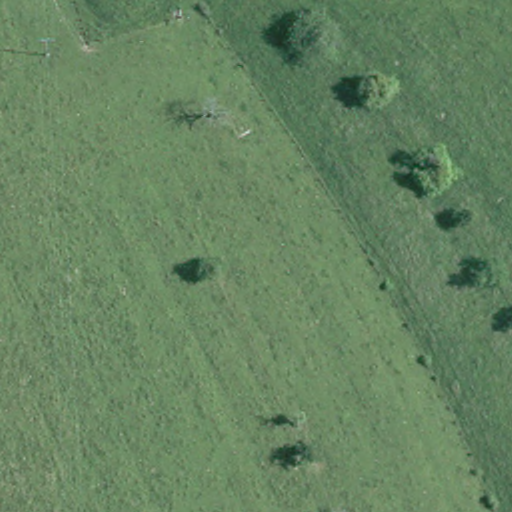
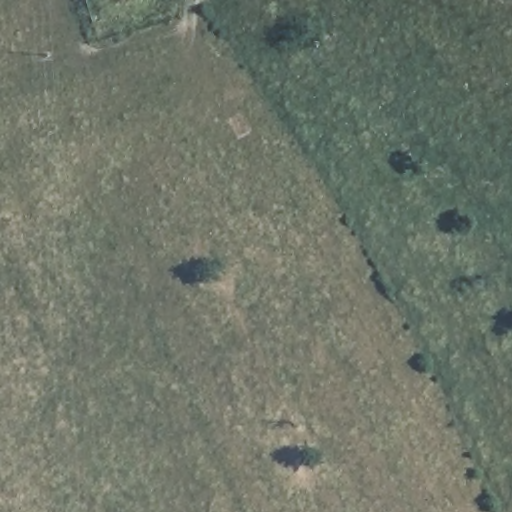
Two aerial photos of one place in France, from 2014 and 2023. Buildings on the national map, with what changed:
[]

